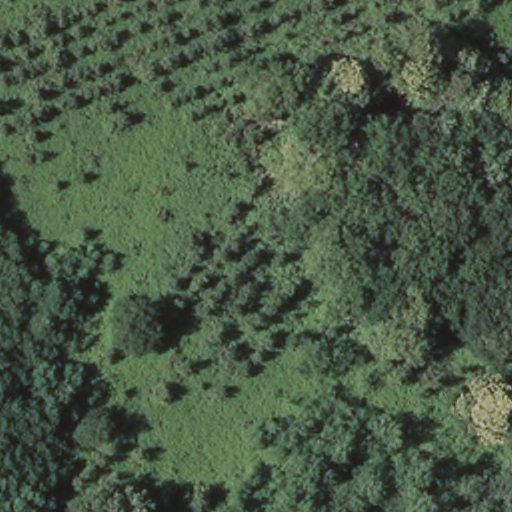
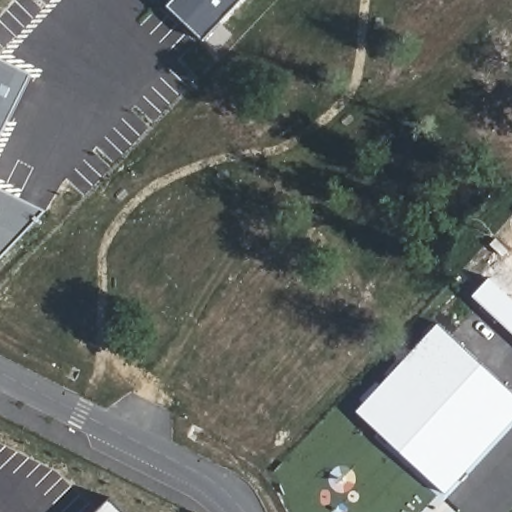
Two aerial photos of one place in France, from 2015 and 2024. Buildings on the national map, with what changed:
new [(167,0),(263,0),(217,48),(167,0)]
new [(30,75),(0,136),(0,60),(30,75)]
new [(44,212),(42,216),(37,214),(34,222),(0,259),(0,190),(44,212)]
new [(512,294),(512,328),(476,295),(493,276),(512,294)]
new [(512,388),(512,424),(447,494),(359,412),(441,323),(512,388)]
new [(112,500),(124,512),(99,512),(112,500)]

